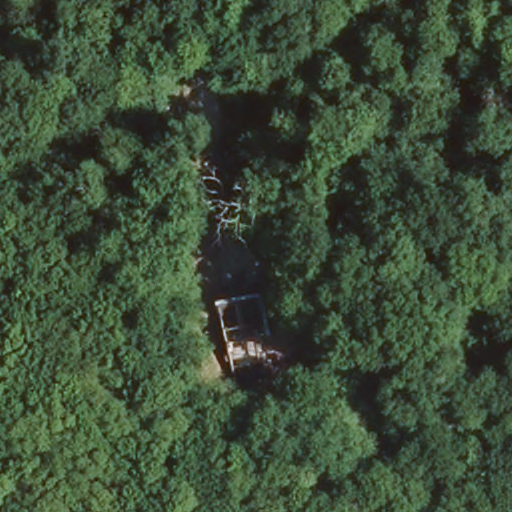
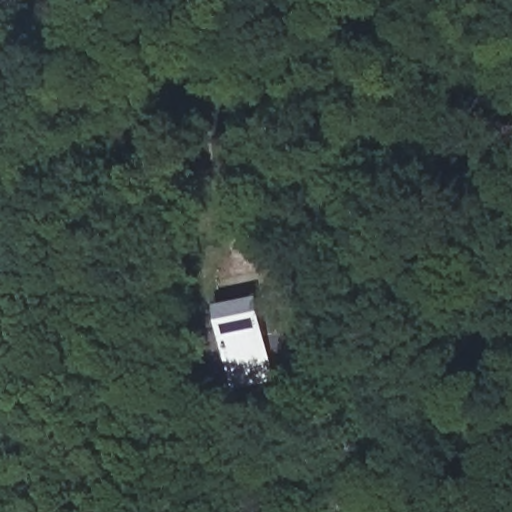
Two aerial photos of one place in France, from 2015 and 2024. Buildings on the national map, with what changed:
unchanged [(222,355),(208,295),(255,285),(270,338),(222,355)]

